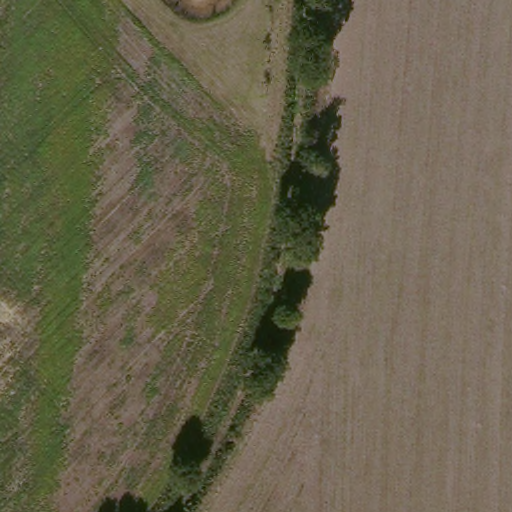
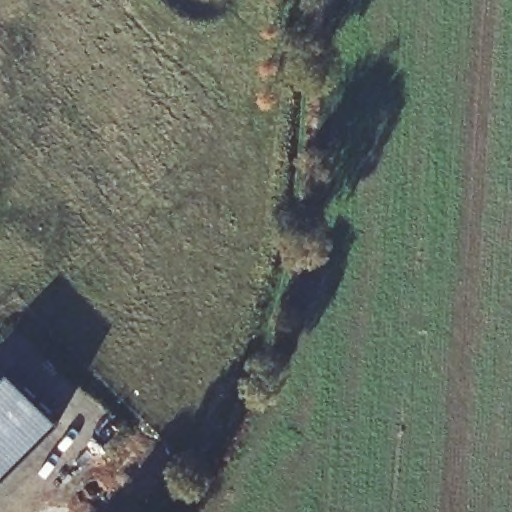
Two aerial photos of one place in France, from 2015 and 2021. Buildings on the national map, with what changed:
new [(2,376),(56,426),(0,485),(0,378),(2,376)]

